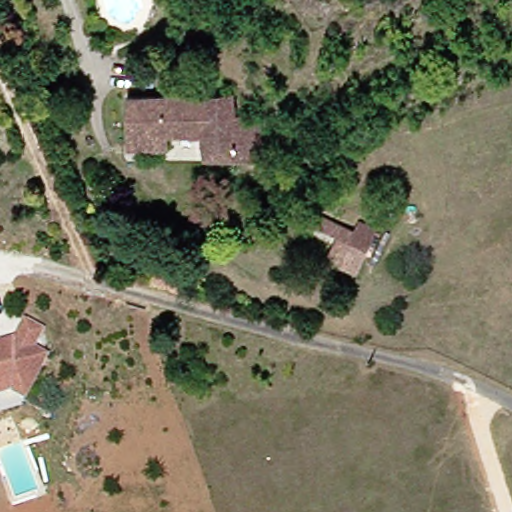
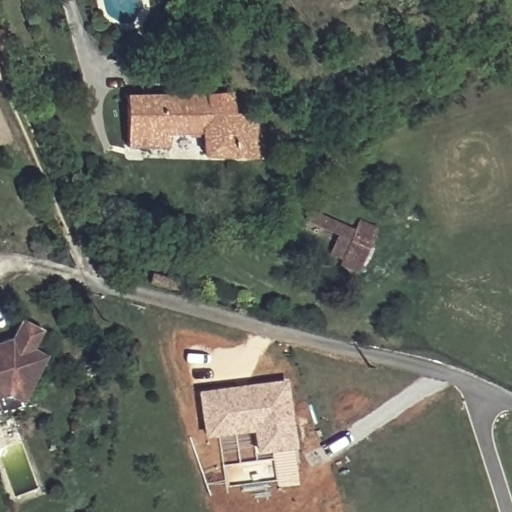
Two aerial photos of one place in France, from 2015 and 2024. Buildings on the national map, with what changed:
unchanged [(205,96),(205,95),(230,93),(231,114),(257,110),(260,159),(199,157),(198,133),(163,133),(163,147),(122,147),(122,96),(205,96)]
unchanged [(325,164),(323,155),(348,150),(350,160),(325,164)]
unchanged [(358,276),(340,269),(341,265),(328,259),(336,240),(306,227),(311,216),(354,235),(357,226),(376,234),(358,276)]
unchanged [(22,395),(7,388),(0,391),(0,355),(3,355),(12,335),(32,345),(22,365),(35,371),(22,395)]
new [(298,447),(256,454),(253,430),(205,438),(198,390),(287,380),(298,447)]

